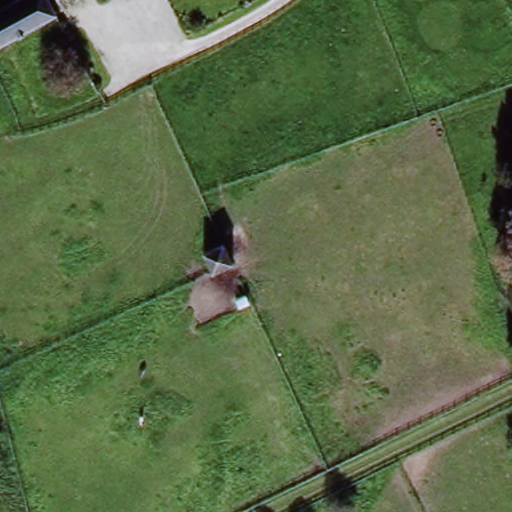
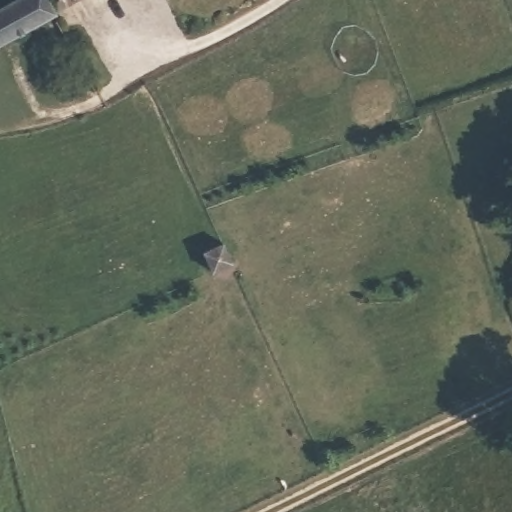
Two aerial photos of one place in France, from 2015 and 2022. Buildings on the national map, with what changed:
unchanged [(16,0),(53,0),(61,14),(0,46),(0,9),(16,0)]
unchanged [(75,0),(78,0),(76,1),(75,0)]
unchanged [(236,264),(213,277),(206,255),(226,248),(236,264)]

